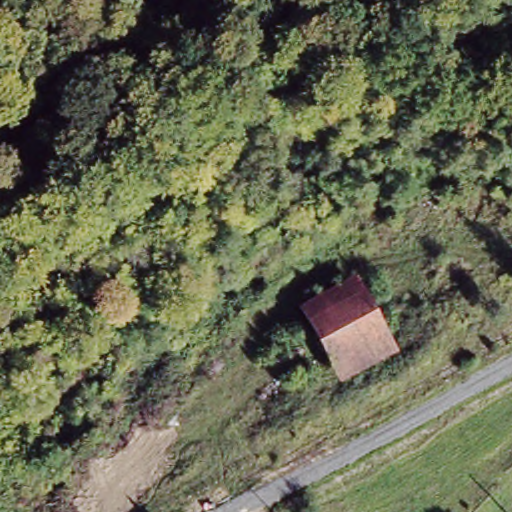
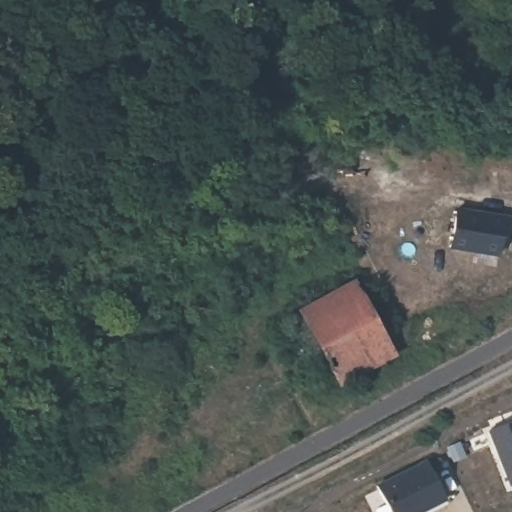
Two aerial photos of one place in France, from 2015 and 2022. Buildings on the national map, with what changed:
new [(512,212),(512,238),(508,237),(505,255),(445,247),(453,203),(512,212)]
unchanged [(350,281),(394,363),(337,386),(295,313),(350,281)]
new [(494,433),(512,426),(512,480),(494,433)]
new [(448,500),(430,510),(428,507),(420,511),(420,512),(391,512),(379,488),(430,462),(448,500)]

